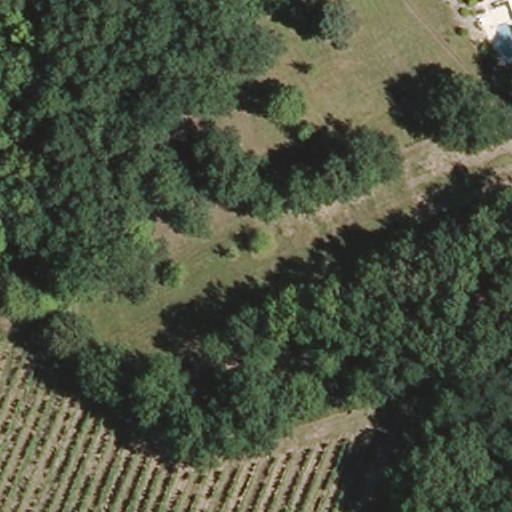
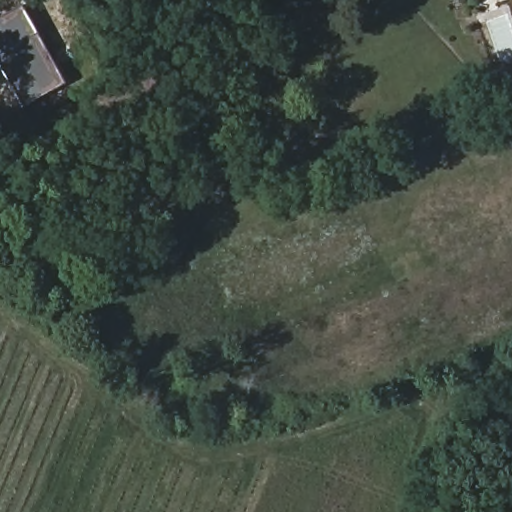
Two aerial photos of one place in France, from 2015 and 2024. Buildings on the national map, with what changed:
new [(24,108),(0,66),(0,18),(20,7),(65,85),(24,108)]

